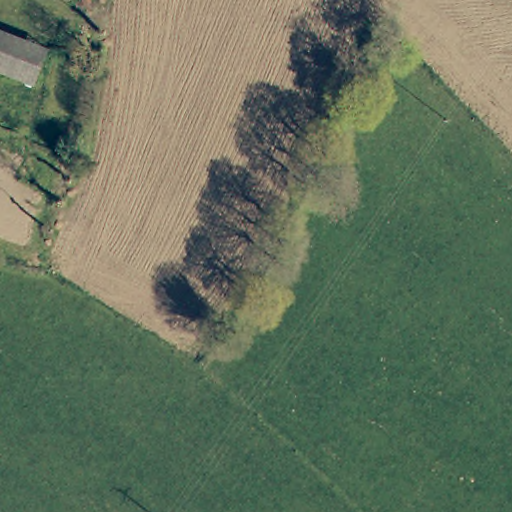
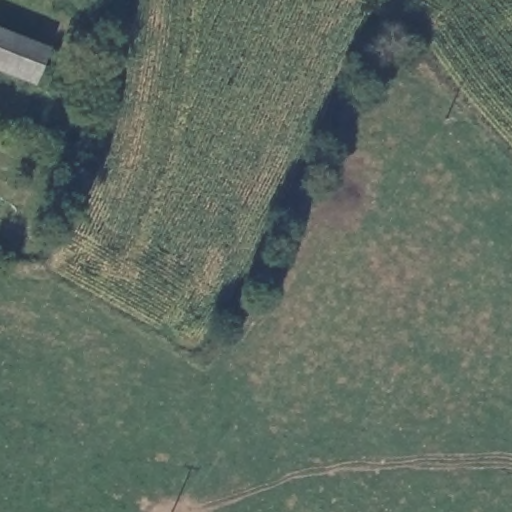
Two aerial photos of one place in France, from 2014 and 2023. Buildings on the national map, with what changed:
unchanged [(47,49),(33,83),(0,69),(0,28),(47,49)]

